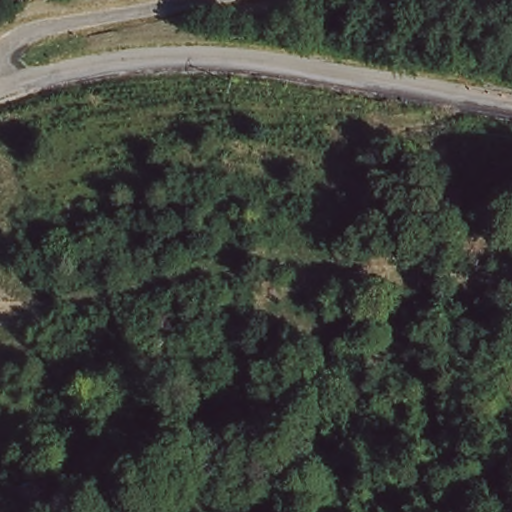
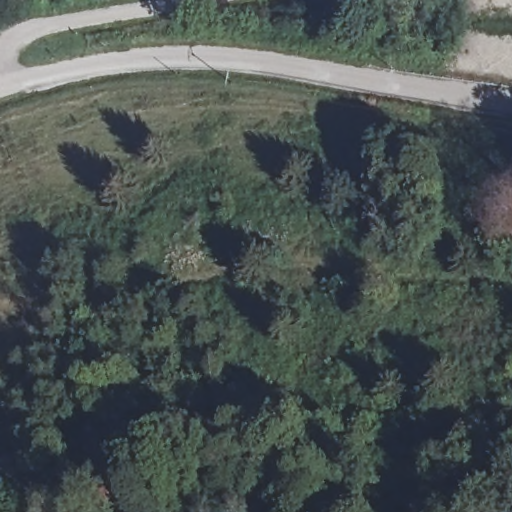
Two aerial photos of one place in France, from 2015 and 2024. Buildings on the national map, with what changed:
unchanged [(35,457),(36,477),(9,480),(8,459),(35,457)]

